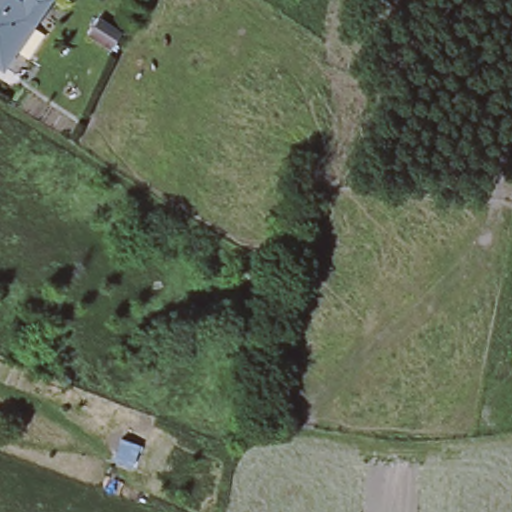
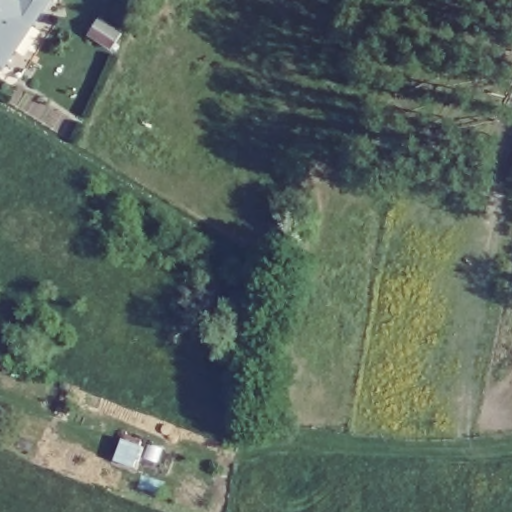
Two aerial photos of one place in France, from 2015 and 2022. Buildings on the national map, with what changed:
unchanged [(0,62),(0,0),(23,0),(36,9),(0,62)]
unchanged [(120,32),(109,49),(86,33),(97,17),(120,32)]

